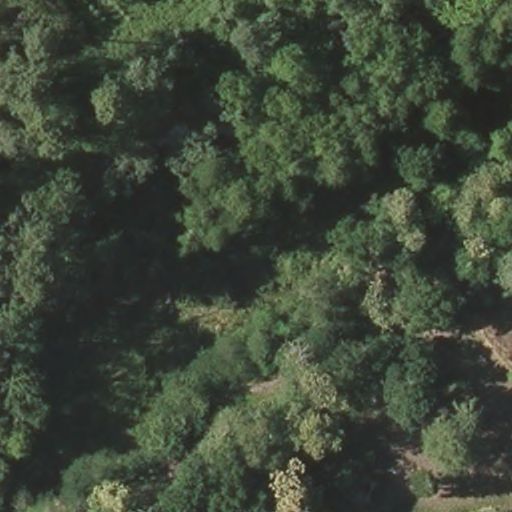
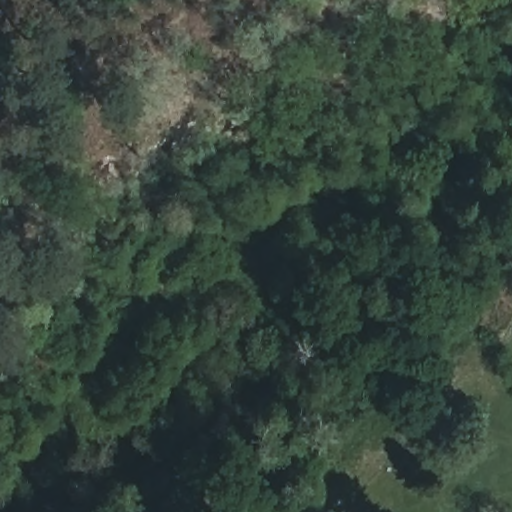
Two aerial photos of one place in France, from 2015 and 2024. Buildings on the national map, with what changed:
unchanged [(348,496),(363,476),(376,487),(363,508),(348,496)]

